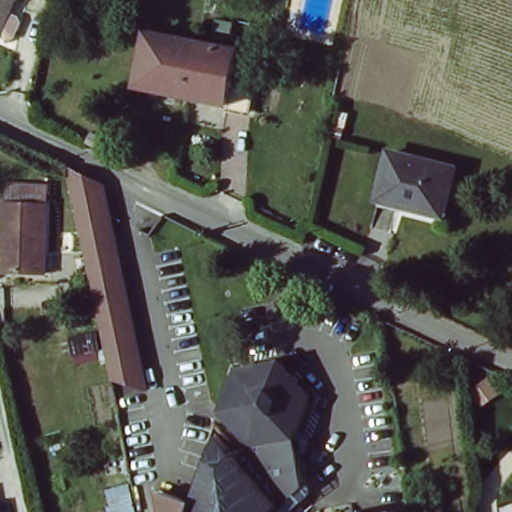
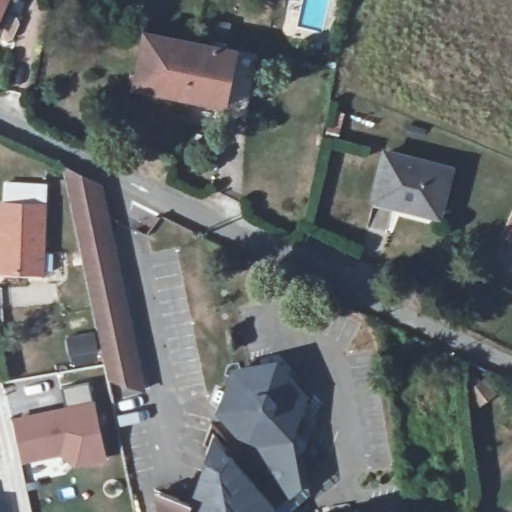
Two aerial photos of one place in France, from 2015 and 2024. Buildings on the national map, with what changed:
unchanged [(0,35),(0,0),(16,0),(0,35)]
unchanged [(173,93),(123,83),(125,79),(119,78),(120,72),(125,73),(134,28),(183,37),(173,93)]
unchanged [(246,49),(236,105),(173,93),(183,37),(246,49)]
unchanged [(338,141),(325,137),(329,124),(341,128),(338,141)]
unchanged [(106,155),(83,144),(88,133),(112,144),(106,155)]
unchanged [(412,208),(374,199),(386,152),(451,168),(439,213),(412,206),(412,208)]
unchanged [(147,389),(111,380),(65,168),(103,183),(147,389)]
unchanged [(0,272),(0,258),(2,203),(5,203),(5,183),(45,185),(44,204),(43,252),(42,273),(35,273),(0,272)]
new [(502,236),(512,211),(512,241),(502,236)]
unchanged [(294,442),(306,482),(289,494),(216,413),(235,364),(276,359),(309,391),(294,442)]
new [(63,416),(59,392),(90,387),(105,467),(73,472),(68,455),(21,464),(15,425),(63,416)]
unchanged [(190,501),(193,492),(214,435),(255,481),(276,506),(270,512),(160,512),(156,489),(190,501)]
unchanged [(404,483),(382,486),(381,476),(403,473),(404,483)]
demolished [(112,512),(106,480),(130,477),(140,512),(112,512)]
demolished [(421,512),(420,504),(440,501),(441,512),(421,512)]

